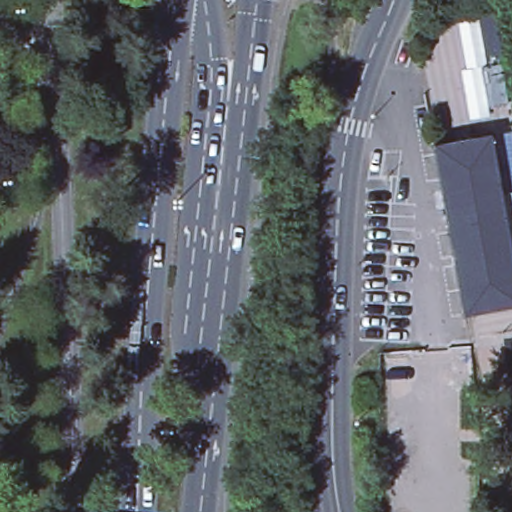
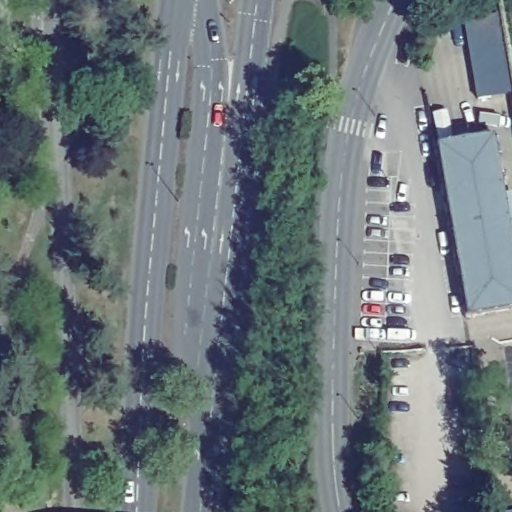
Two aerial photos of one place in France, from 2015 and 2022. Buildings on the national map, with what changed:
new [(502,9),(512,79),(512,89),(476,96),(463,15),(502,9)]
unchanged [(433,146),(493,135),(512,235),(512,310),(465,319),(433,146)]

